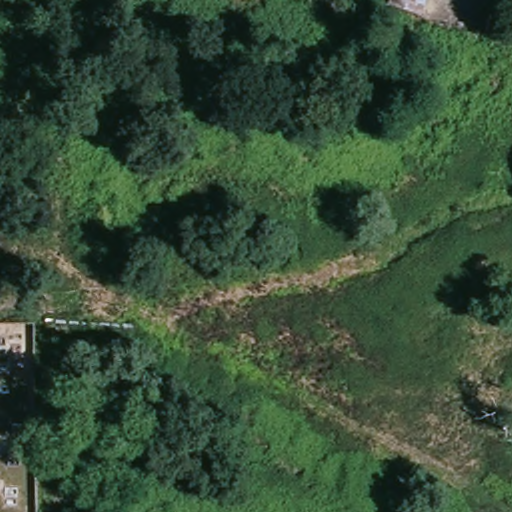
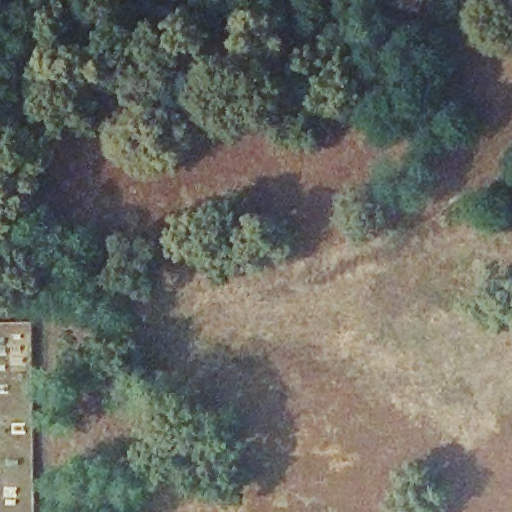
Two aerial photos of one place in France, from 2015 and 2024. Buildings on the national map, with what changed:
unchanged [(406,0),(431,0),(426,17),(404,6),(406,0)]

